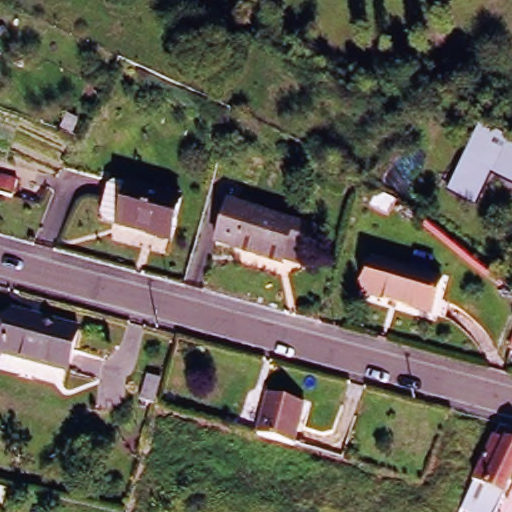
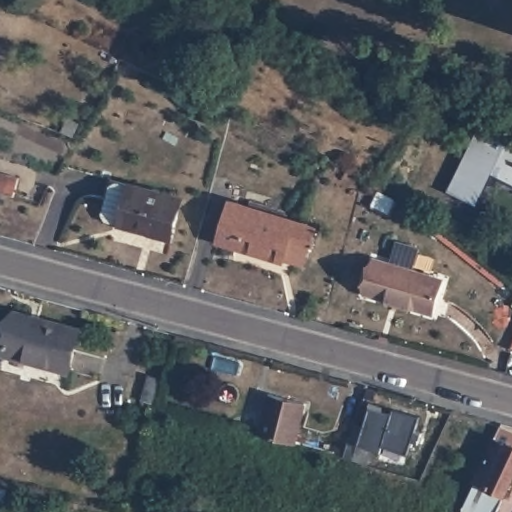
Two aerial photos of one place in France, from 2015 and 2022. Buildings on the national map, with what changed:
unchanged [(445,192),(480,124),(512,139),(512,185),(491,176),(475,207),(445,192)]
unchanged [(0,179),(17,184),(13,198),(0,194),(0,179)]
unchanged [(173,239),(123,226),(113,222),(107,214),(114,188),(123,183),(135,186),(185,200),(173,239)]
unchanged [(300,246),(280,240),(276,252),(230,240),(210,235),(222,193),(241,199),(307,216),(300,246)]
unchanged [(435,313),(367,294),(377,258),(445,277),(435,313)]
unchanged [(0,348),(0,337),(8,308),(75,327),(64,367),(0,348)]
unchanged [(150,401),(136,398),(143,373),(156,377),(150,401)]
unchanged [(303,401),(291,441),(255,431),(267,391),(303,401)]
new [(387,416),(389,411),(416,419),(411,434),(417,436),(413,447),(407,444),(404,453),(379,446),(377,452),(353,445),(365,408),(387,416)]
unchanged [(495,435),(512,442),(512,446),(510,452),(512,453),(512,479),(497,512),(462,512),(461,512),(465,501),(470,487),(495,435)]

